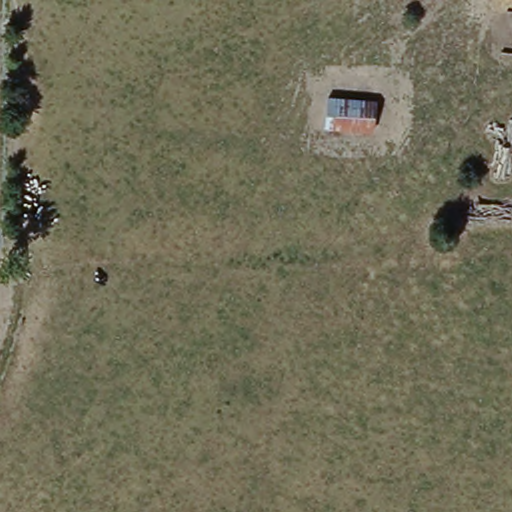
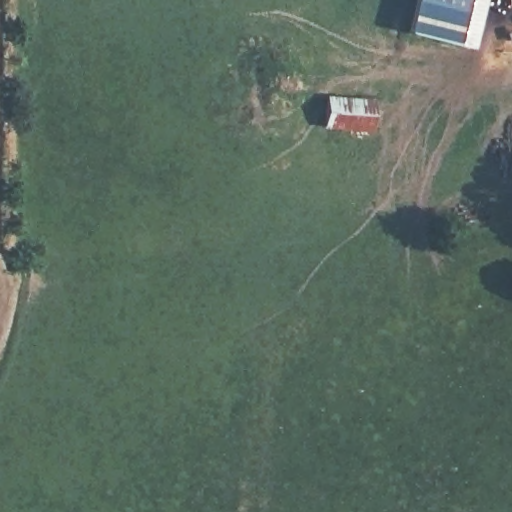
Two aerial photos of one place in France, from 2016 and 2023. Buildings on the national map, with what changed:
new [(479,0),(467,46),(408,32),(417,0),(479,0)]
unchanged [(379,105),(377,135),(328,131),(331,101),(379,105)]

